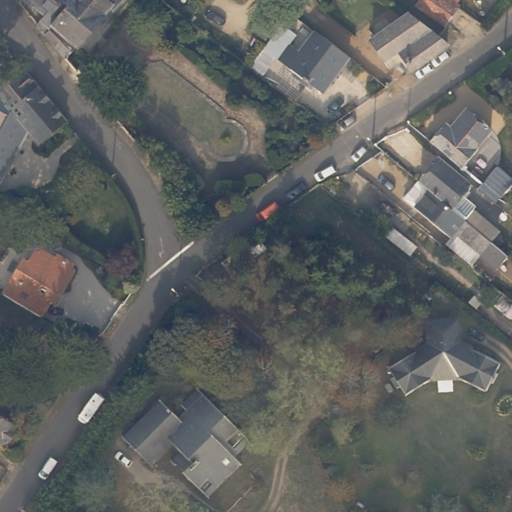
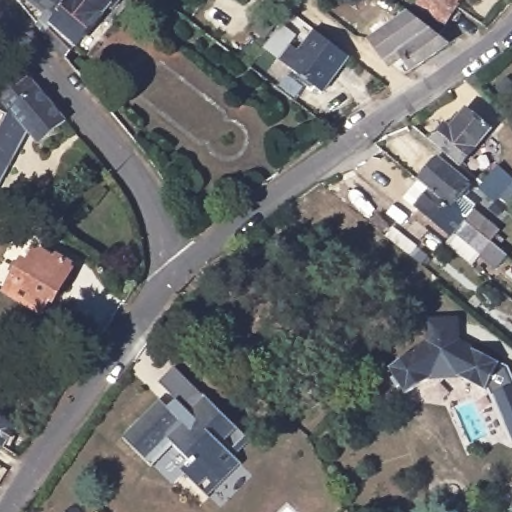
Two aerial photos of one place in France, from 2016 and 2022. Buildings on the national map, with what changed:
unchanged [(116,13),(110,8),(67,62),(36,24),(43,14),(25,0),(127,0),(116,13)]
unchanged [(424,0),(442,0),(456,10),(444,27),(418,9),(424,0)]
unchanged [(407,16),(448,48),(415,72),(400,53),(385,63),(370,43),(407,16)]
unchanged [(296,44),(305,51),(318,30),(354,57),(327,93),(268,51),(286,26),(301,37),(296,44)]
unchanged [(37,84),(19,99),(15,95),(5,103),(0,97),(0,68),(8,72),(19,63),(37,84)]
unchanged [(67,121),(40,144),(30,131),(0,182),(0,125),(9,108),(19,99),(37,84),(67,121)]
unchanged [(430,141),(447,121),(452,125),(465,109),(489,129),(464,159),(481,174),(476,180),(430,141)]
unchanged [(0,125),(0,111),(6,114),(0,125)]
unchanged [(438,159),(469,186),(460,196),(475,208),(473,211),(498,232),(490,241),(465,220),(450,208),(428,190),(419,182),(438,159)]
unchanged [(493,202),(477,188),(495,166),(512,180),(493,202)]
unchanged [(428,190),(450,208),(465,220),(490,241),(508,256),(497,269),(479,253),(479,252),(455,232),(451,238),(414,207),(404,199),(419,182),(428,190)]
unchanged [(33,257),(42,242),(61,253),(63,250),(79,260),(58,295),(54,293),(45,309),(9,287),(19,271),(29,255),(33,257)]
unchanged [(431,320),(460,320),(461,346),(473,351),(475,348),(502,360),(498,369),(501,370),(496,381),(493,380),(489,388),(463,375),(437,375),(408,392),(402,382),(399,383),(394,375),(397,373),(391,365),(432,343),(431,320)]
unchanged [(171,442),(149,464),(122,437),(159,400),(175,416),(183,408),(179,405),(197,388),(248,438),(233,454),(239,460),(204,495),(180,471),(169,461),(179,450),(171,442)]
unchanged [(0,451),(0,417),(17,429),(2,452),(0,451)]
unchanged [(99,512),(101,509),(105,512),(99,512)]

